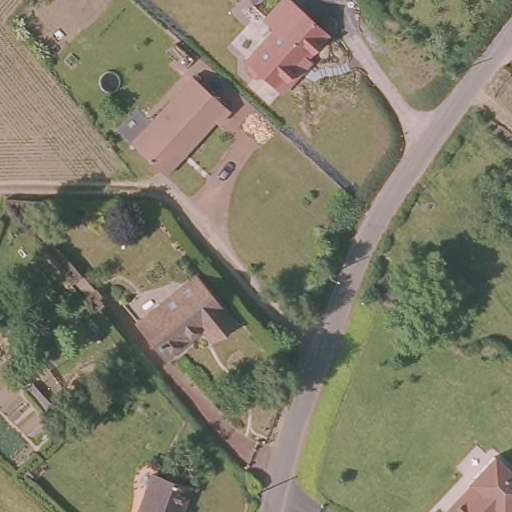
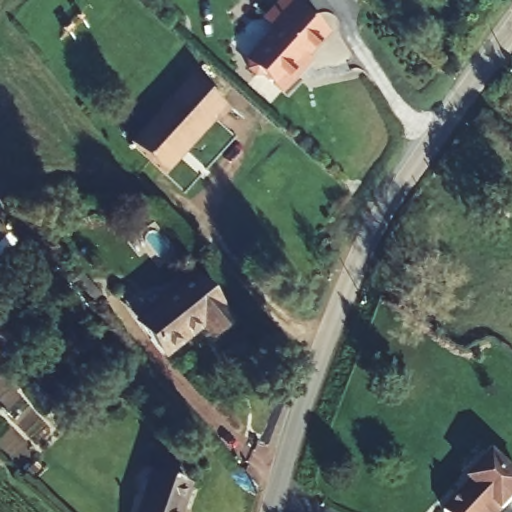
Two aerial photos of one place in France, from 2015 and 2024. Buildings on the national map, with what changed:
unchanged [(250,80),(243,73),(243,65),(241,63),(270,32),(259,22),(280,0),(281,0),(321,39),(287,76),(290,80),(274,96),(258,79),(250,80)]
unchanged [(223,111),(212,125),(210,124),(160,177),(125,145),(187,78),(223,111)]
unchanged [(185,273),(223,317),(205,335),(195,322),(160,353),(132,321),(185,273)]
unchanged [(492,452),(512,472),(512,496),(496,512),(446,512),(442,508),(471,480),(468,477),(492,452)]
unchanged [(187,512),(145,512),(160,475),(197,489),(187,512)]

